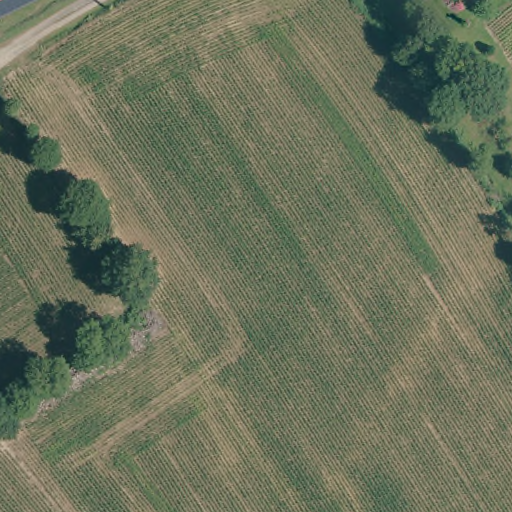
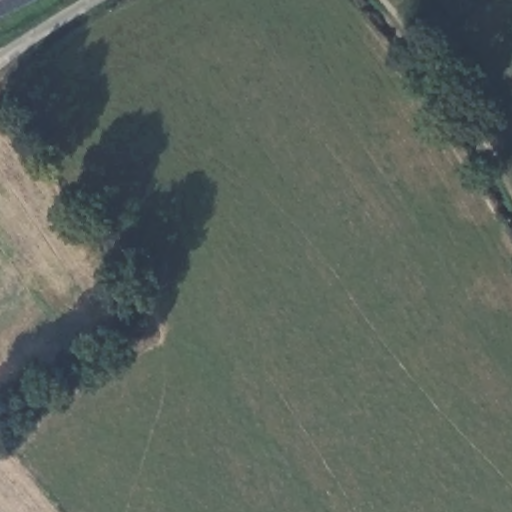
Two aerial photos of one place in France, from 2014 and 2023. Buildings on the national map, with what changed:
unchanged [(0,0),(27,0),(0,14),(0,0)]

